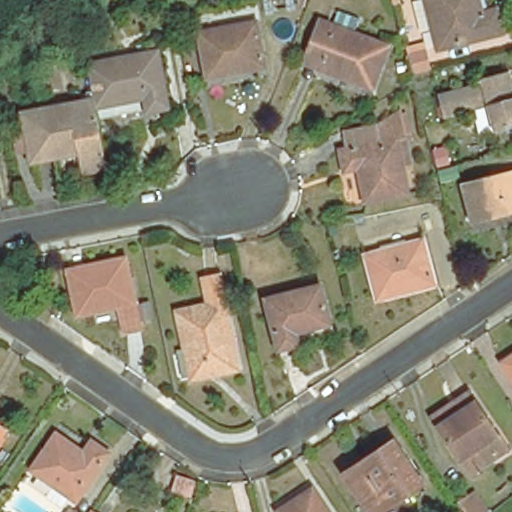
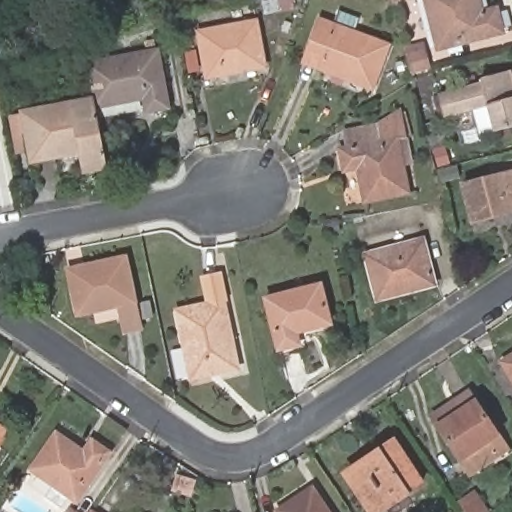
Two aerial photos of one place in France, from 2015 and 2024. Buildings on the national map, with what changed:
unchanged [(496,12),(501,32),(438,49),(426,0),(475,0),(480,16),(496,12)]
unchanged [(307,51),(318,17),(331,22),(336,8),(357,16),(352,30),(387,42),(371,85),(321,66),(303,59),(307,51)]
unchanged [(263,67),(207,79),(197,36),(255,24),(263,67)]
unchanged [(156,47),(167,105),(146,109),(142,95),(94,104),(92,97),(85,61),(156,47)]
unchanged [(480,80),(508,72),(512,86),(512,129),(495,133),(488,108),(444,120),(438,96),(481,85),(480,80)]
unchanged [(428,75),(432,90),(417,94),(413,79),(428,75)]
unchanged [(94,104),(106,164),(84,168),(81,148),(30,157),(29,148),(14,151),(7,115),(22,112),(22,110),(92,97),(94,104)]
unchanged [(408,138),(417,167),(407,169),(412,194),(368,204),(361,170),(348,172),(344,151),(351,150),(347,134),(382,127),(403,115),(408,138)]
unchanged [(463,187),(512,174),(512,213),(472,224),(463,187)]
unchanged [(433,287),(377,302),(365,255),(422,241),(433,287)]
unchanged [(134,325),(119,327),(114,303),(72,312),(64,267),(120,256),(134,325)]
unchanged [(211,305),(207,280),(225,276),(231,302),(228,303),(242,371),(195,381),(182,312),(211,305)]
unchanged [(328,325),(294,333),(297,345),(277,350),(266,301),(319,288),(328,325)]
unchanged [(512,352),(512,376),(501,360),(512,352)]
unchanged [(512,456),(473,480),(442,432),(436,422),(461,407),(473,398),(512,456)]
unchanged [(3,432),(0,436),(0,430),(3,432)]
unchanged [(42,493),(51,482),(30,467),(55,431),(82,449),(91,438),(107,449),(73,497),(66,492),(58,504),(42,493)]
unchanged [(419,486),(377,512),(368,512),(346,477),(393,446),(419,486)]
unchanged [(174,474),(194,479),(189,497),(170,492),(174,474)]
unchanged [(324,512),(273,512),(271,508),(306,485),(324,512)]
unchanged [(485,512),(464,512),(457,502),(472,493),(485,512)]
unchanged [(91,509),(95,512),(89,512),(91,509)]
unchanged [(67,511),(70,512),(66,512),(67,511)]

